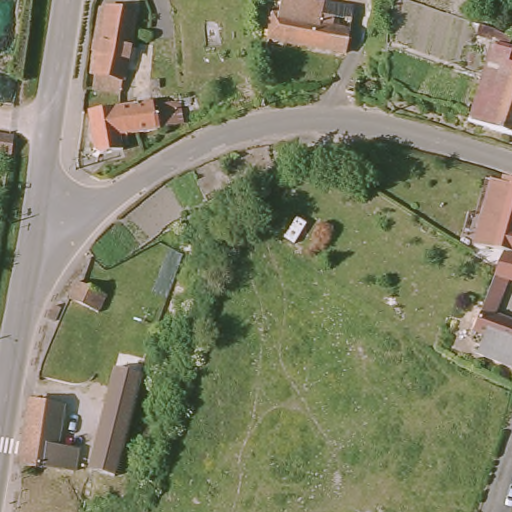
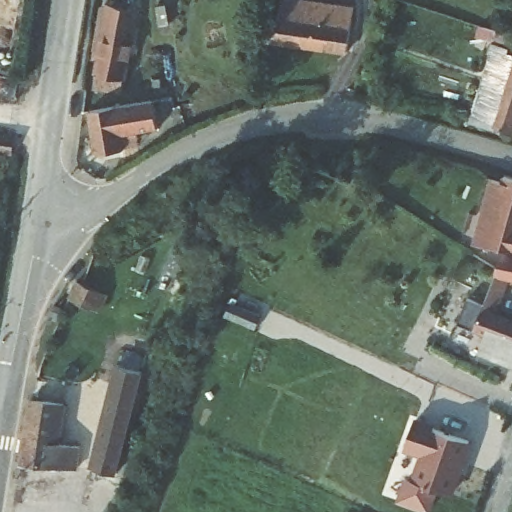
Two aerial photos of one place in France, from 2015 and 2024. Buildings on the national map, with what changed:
unchanged [(125,79),(97,83),(113,0),(137,0),(140,1),(125,79)]
unchanged [(351,46),(320,41),(271,33),(277,3),(277,0),(327,0),(326,11),(324,18),(355,23),(351,46)]
unchanged [(484,120),(490,95),(492,96),(505,60),(512,62),(512,129),(484,120)]
unchanged [(162,92),(167,120),(130,126),(132,137),(125,138),(126,144),(106,147),(99,143),(92,105),(162,92)]
unchanged [(0,150),(0,133),(11,135),(8,152),(0,150)]
unchanged [(512,178),(512,250),(507,250),(482,242),(492,204),(499,206),(507,177),(512,178)]
unchanged [(485,355),(489,344),(493,334),(474,326),(497,270),(505,254),(512,255),(512,281),(510,280),(496,313),(512,320),(512,366),(485,355)]
unchanged [(74,300),(81,284),(105,295),(109,297),(110,298),(104,313),(95,310),(74,300)]
unchanged [(146,370),(136,406),(117,472),(92,466),(121,364),(146,370)]
unchanged [(68,402),(62,441),(83,445),(80,467),(59,463),(25,461),(35,398),(68,402)]
new [(405,476),(412,479),(420,456),(404,451),(417,417),(436,423),(434,429),(472,442),(452,496),(439,491),(430,512),(427,512),(396,501),(405,476)]

